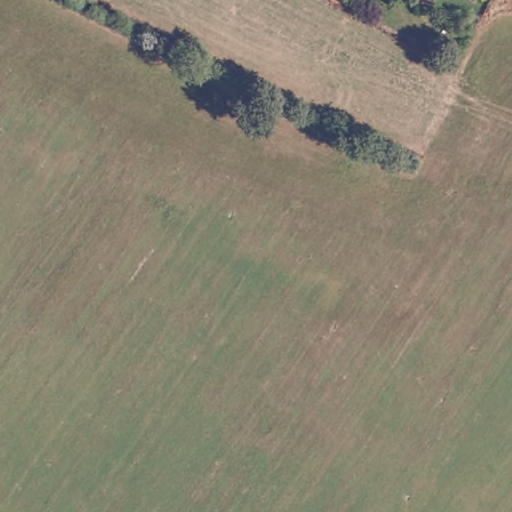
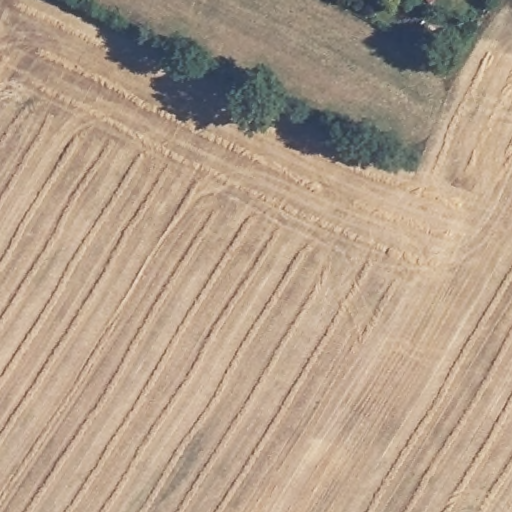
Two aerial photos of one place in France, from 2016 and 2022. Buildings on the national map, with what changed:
[]

